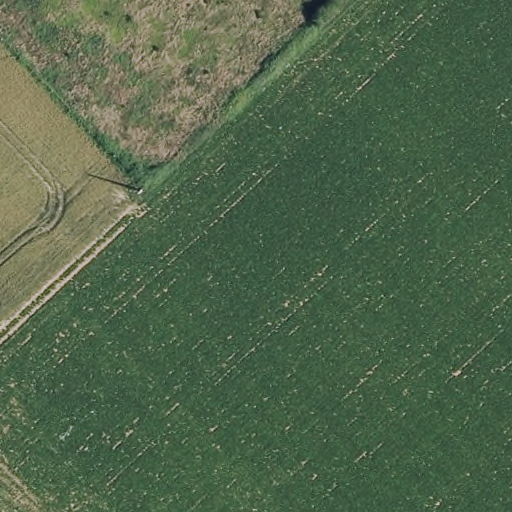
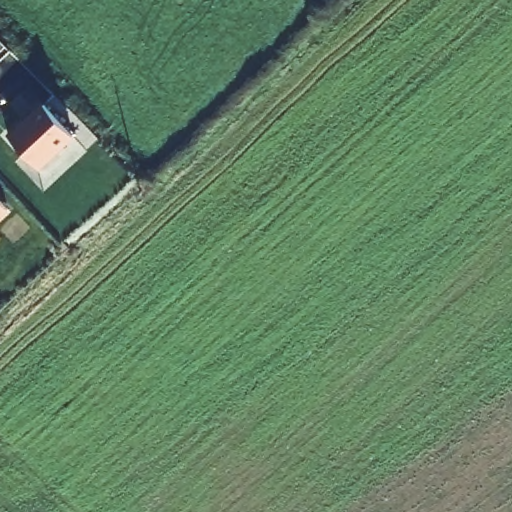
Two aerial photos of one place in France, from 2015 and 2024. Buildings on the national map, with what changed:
new [(31,125),(32,125),(50,108),(79,140),(44,172),(14,140),(31,125)]
new [(0,225),(0,199),(13,214),(0,225)]

